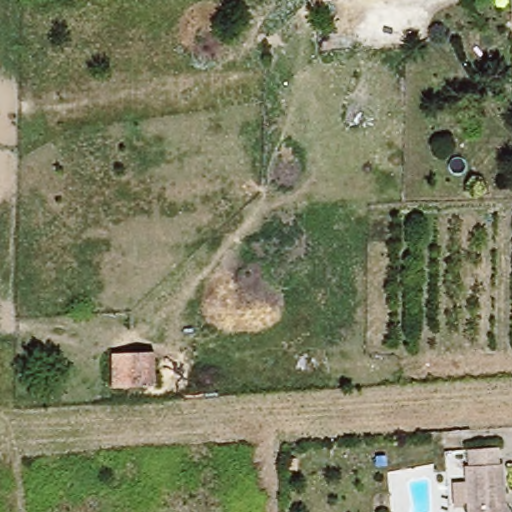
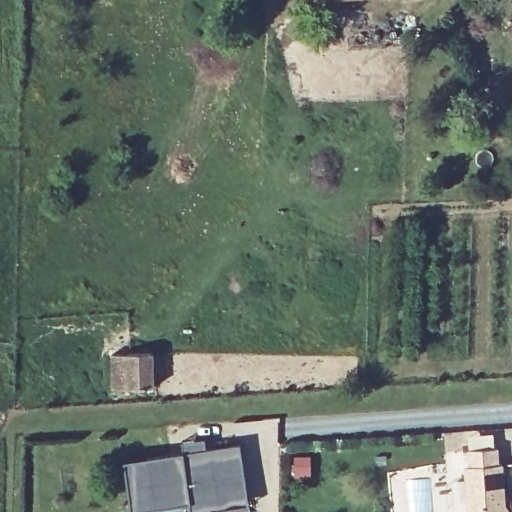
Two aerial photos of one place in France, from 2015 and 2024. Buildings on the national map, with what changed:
unchanged [(110,351),(151,350),(152,385),(110,385),(110,351)]
new [(179,445),(203,442),(205,452),(238,448),(247,509),(227,512),(188,512),(187,507),(151,512),(129,512),(122,465),(180,456),(179,445)]
unchanged [(470,470),(470,452),(497,453),(497,467),(502,467),(503,507),(507,512),(468,512),(466,472),(470,470)]

